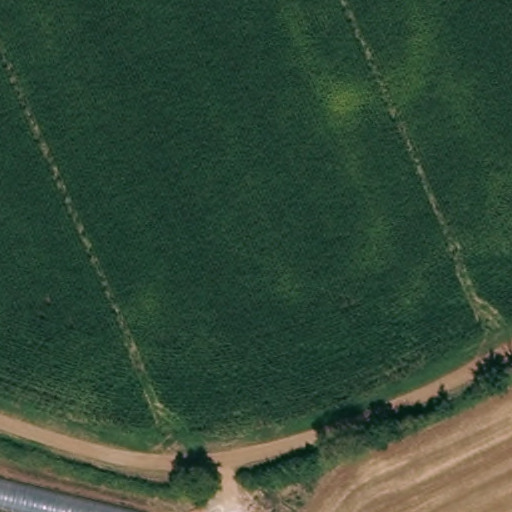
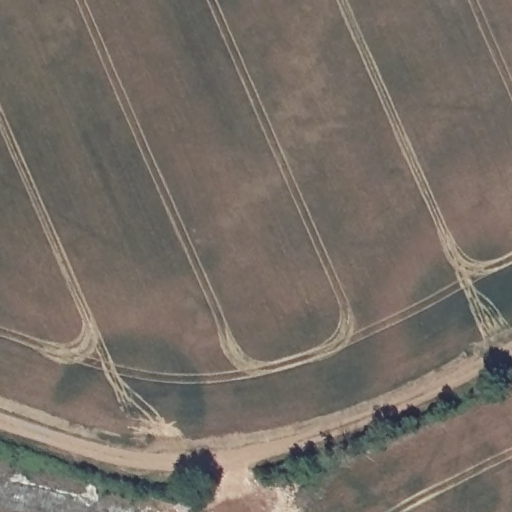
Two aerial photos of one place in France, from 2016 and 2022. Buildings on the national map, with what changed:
unchanged [(0,484),(115,512),(0,512),(0,484)]

